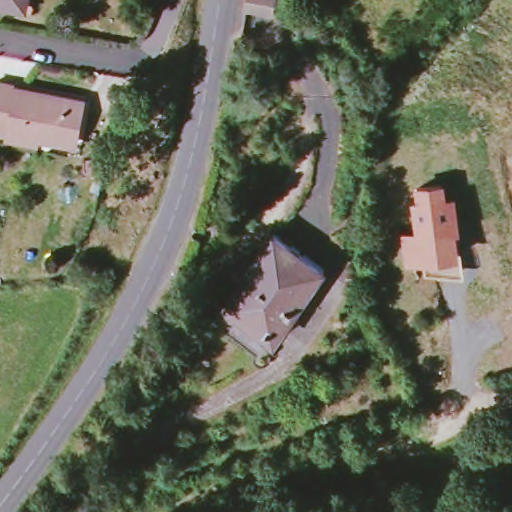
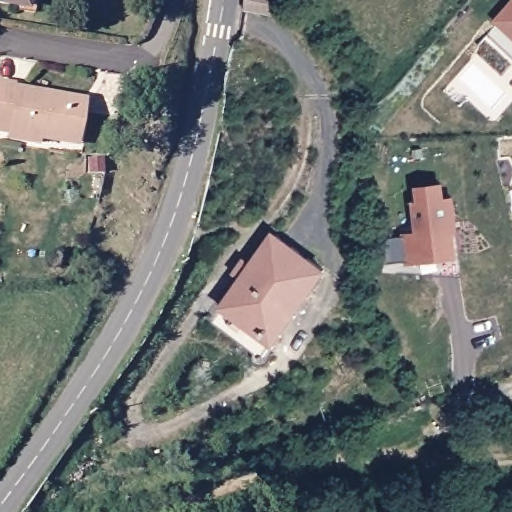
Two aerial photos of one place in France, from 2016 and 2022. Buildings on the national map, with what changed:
unchanged [(0,2),(0,0),(33,0),(31,14),(14,11),(15,5),(0,2)]
unchanged [(244,16),(245,0),(278,0),(277,20),(244,16)]
new [(498,23),(495,20),(512,0),(512,56),(488,34),(498,23)]
unchanged [(15,92),(86,104),(80,141),(42,135),(41,147),(22,145),(24,140),(0,136),(0,88),(15,90),(15,92)]
unchanged [(445,181),(447,195),(457,195),(461,230),(457,231),(461,255),(464,275),(427,274),(424,261),(407,265),(402,234),(415,231),(410,200),(418,199),(416,185),(445,181)]
unchanged [(262,356),(262,355),(259,355),(257,353),(256,352),(256,350),(255,347),(256,345),(257,341),(252,338),(215,311),(246,266),(240,262),(247,250),(254,254),(276,222),(327,258),(275,332),(279,335),(276,338),(274,343),(275,345),(275,346),(275,347),(275,349),(274,350),(274,351),(272,352),(272,354),(270,355),(269,355),(267,356),(265,356),(264,356),(262,356)]

